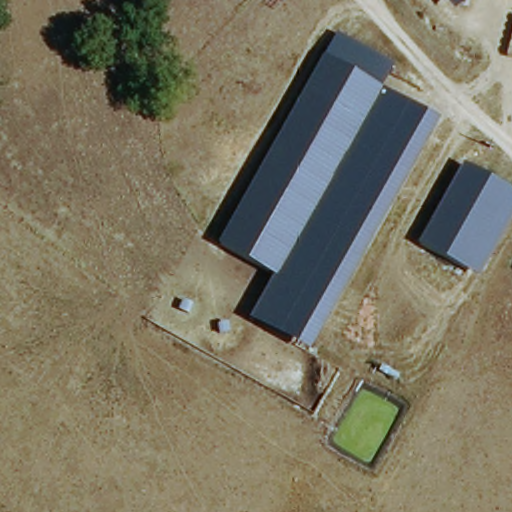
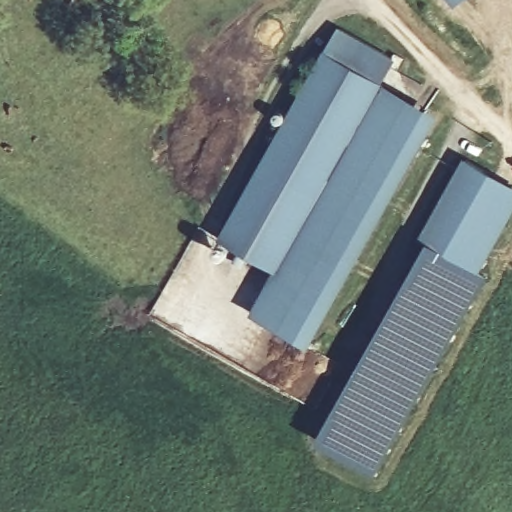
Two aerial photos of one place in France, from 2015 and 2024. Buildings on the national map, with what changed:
unchanged [(249,313),(274,271),(217,237),(337,26),(393,57),(382,81),(437,114),(309,345),(249,313)]
unchanged [(482,269),(423,240),(467,157),(512,181),(512,215),(482,269)]
new [(489,275),(379,478),(317,443),(428,243),(482,269),(489,275)]

